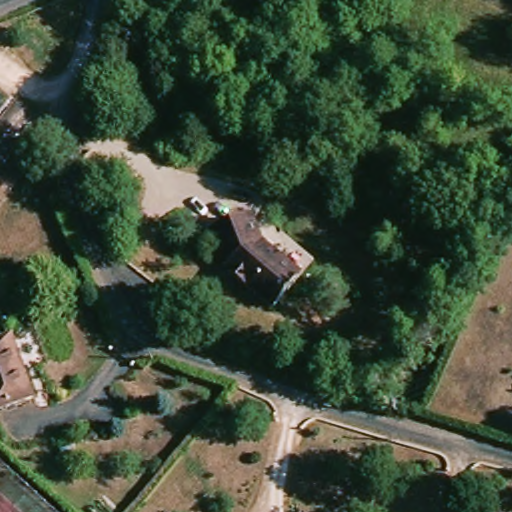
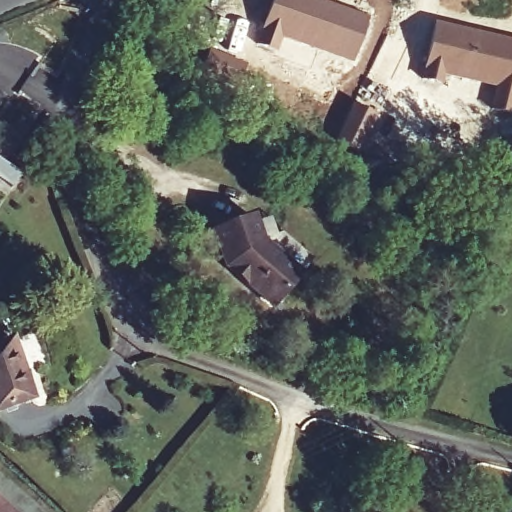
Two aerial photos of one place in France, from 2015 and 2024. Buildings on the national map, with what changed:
new [(331,0),(337,1),(368,13),(350,61),(317,51),(310,66),(263,47),(267,36),(258,30),(269,0),(331,0)]
new [(434,19),(512,35),(512,112),(490,106),(494,86),(448,74),(446,83),(420,75),(434,19)]
new [(387,35),(406,44),(387,85),(367,76),(387,35)]
new [(210,46),(247,62),(233,89),(197,71),(210,46)]
new [(354,101),(380,115),(362,152),(335,139),(354,101)]
unchanged [(269,220),(276,237),(284,236),(313,262),(300,277),(263,248),(255,225),(269,220)]
unchanged [(275,309),(223,268),(212,234),(252,221),(255,225),(263,248),(300,277),(275,309)]
unchanged [(0,343),(11,339),(31,399),(0,410),(0,343)]

